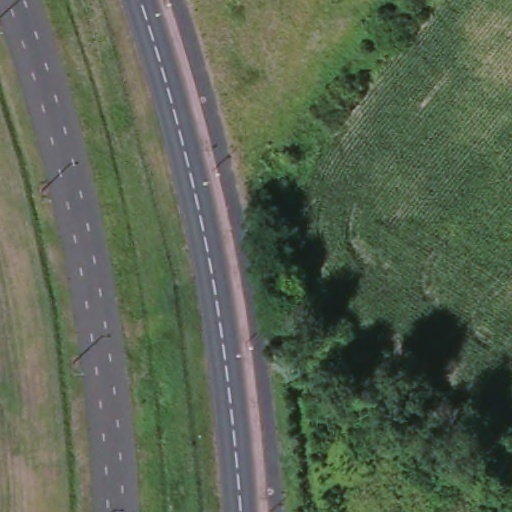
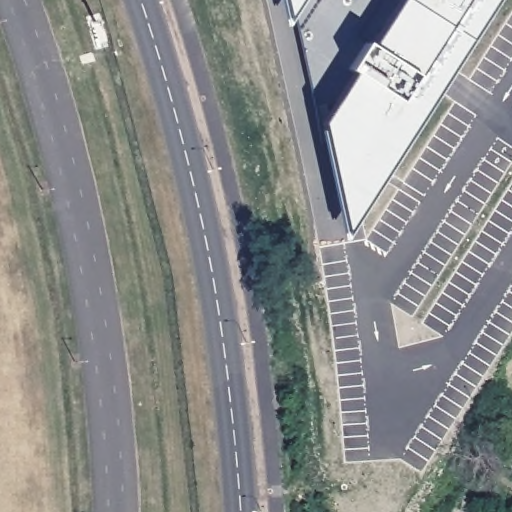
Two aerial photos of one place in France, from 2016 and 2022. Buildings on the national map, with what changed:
new [(299,0),(293,9),(291,0),(299,0)]
new [(336,97),(345,81),(336,74),(343,65),(339,62),(357,32),(374,42),(400,0),(495,0),(360,211),(336,97)]

